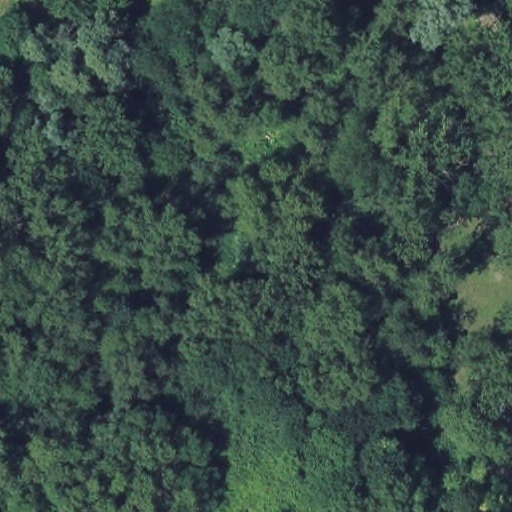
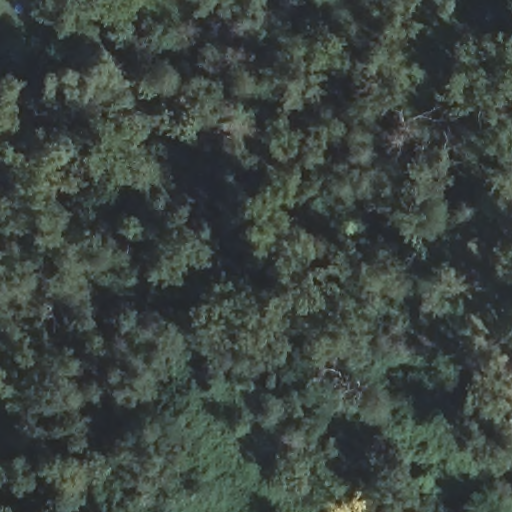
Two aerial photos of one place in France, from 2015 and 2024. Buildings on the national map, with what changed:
unchanged [(512,415),(512,432),(509,416),(512,415)]

